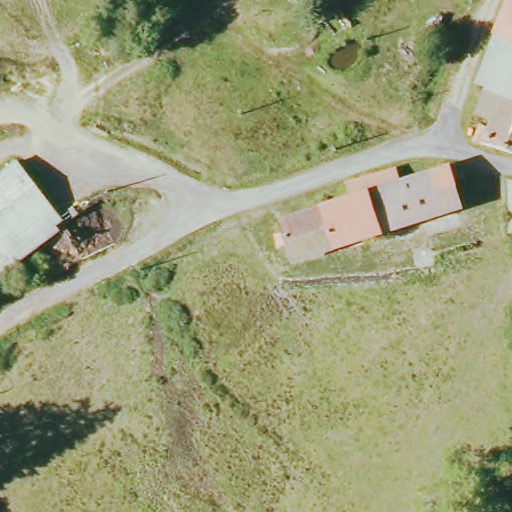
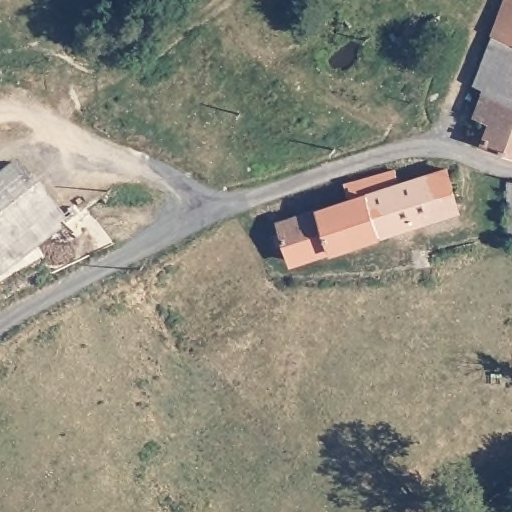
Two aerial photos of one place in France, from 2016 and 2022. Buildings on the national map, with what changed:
unchanged [(512,5),(512,39),(501,35),(512,5)]
unchanged [(315,32),(331,20),(346,41),(330,52),(315,32)]
unchanged [(483,117),(494,87),(484,82),(501,35),(512,39),(512,85),(499,121),(483,117)]
unchanged [(485,128),(493,131),(499,121),(512,85),(512,152),(480,143),(485,128)]
unchanged [(356,202),(354,187),(396,174),(401,187),(447,172),(462,212),(297,267),(284,226),(356,202)]
unchanged [(28,175),(58,229),(37,242),(43,256),(0,285),(0,192),(28,175)]
unchanged [(512,215),(511,215),(511,187),(512,187),(512,215)]

